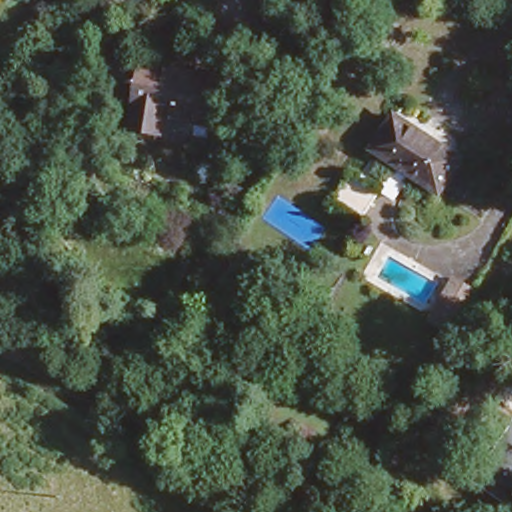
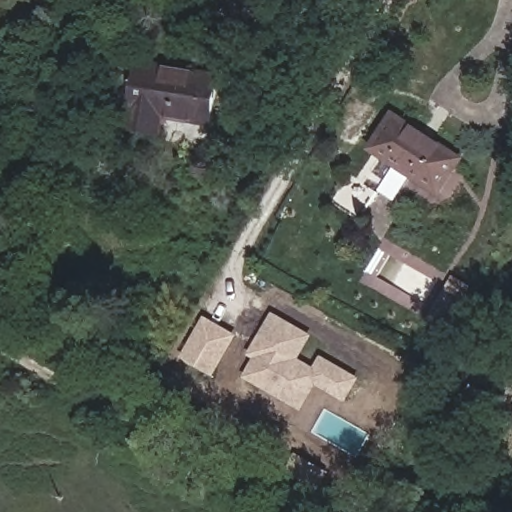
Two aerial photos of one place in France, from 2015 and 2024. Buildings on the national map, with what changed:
new [(262,22),(259,0),(285,0),(287,19),(262,22)]
unchanged [(209,67),(206,114),(161,111),(159,134),(129,131),(134,61),(209,67)]
unchanged [(458,148),(435,185),(367,141),(391,104),(458,148)]
unchanged [(404,182),(387,211),(358,194),(376,165),(404,182)]
unchanged [(492,272),(468,316),(453,307),(476,263),(492,272)]
new [(253,358),(248,355),(272,312),(312,335),(300,359),(315,367),(321,356),(361,377),(347,402),(317,386),(303,411),(243,377),(253,358)]
new [(214,378),(182,359),(206,317),(239,336),(214,378)]
new [(489,387),(505,399),(489,422),(473,410),(489,387)]
new [(512,435),(512,503),(481,481),(508,441),(512,435)]
new [(297,456),(327,472),(319,487),(289,470),(297,456)]

